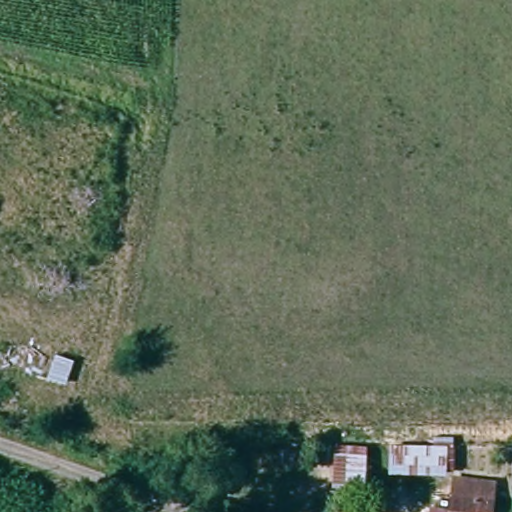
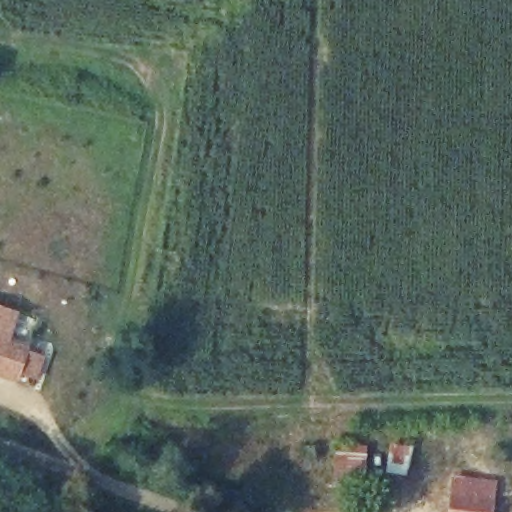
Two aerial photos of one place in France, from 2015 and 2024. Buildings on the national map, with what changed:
new [(18,312),(9,342),(30,349),(29,353),(44,358),(35,380),(20,374),(17,381),(0,376),(0,306),(18,312)]
unchanged [(445,442),(445,473),(385,473),(386,444),(445,442)]
unchanged [(365,455),(363,487),(330,485),(332,453),(365,455)]
unchanged [(451,486),(489,490),(487,512),(448,512),(451,486)]

